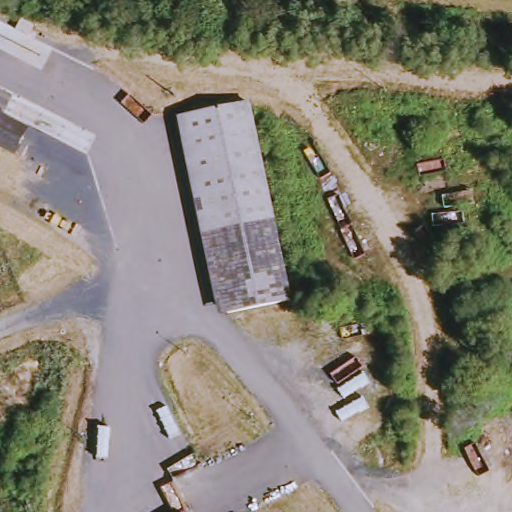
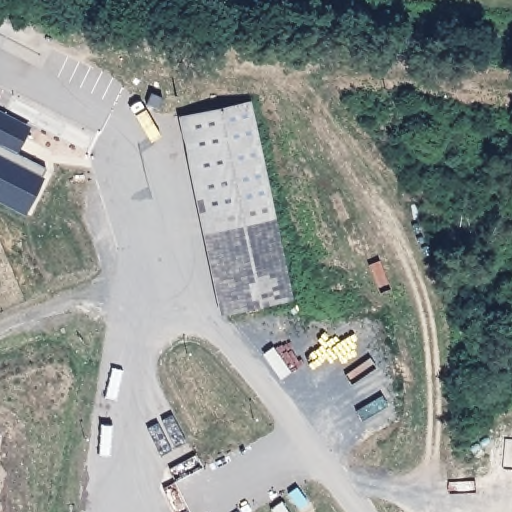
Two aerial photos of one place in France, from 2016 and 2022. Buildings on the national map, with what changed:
unchanged [(178,115),(253,100),(291,299),(220,315),(178,115)]
new [(0,112),(30,125),(17,154),(45,168),(24,214),(0,202),(0,112)]
demolished [(0,113),(32,126),(22,153),(0,143),(0,113)]

